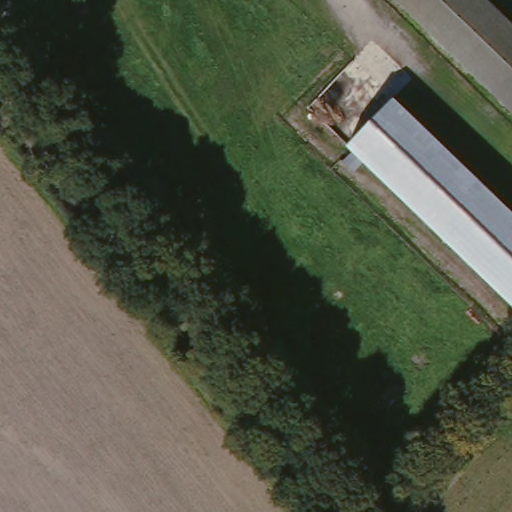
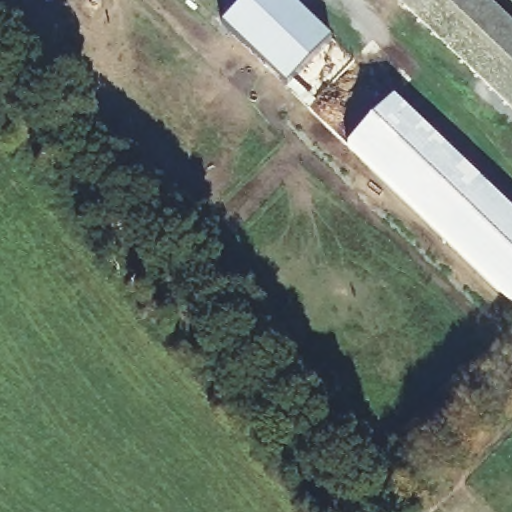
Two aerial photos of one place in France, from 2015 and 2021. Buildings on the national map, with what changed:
new [(285,85),(222,25),(246,0),(288,0),(330,41),(285,85)]
unchanged [(392,0),(481,0),(512,30),(512,119),(392,0)]
unchanged [(512,206),(512,301),(359,145),(406,105),(512,206)]

